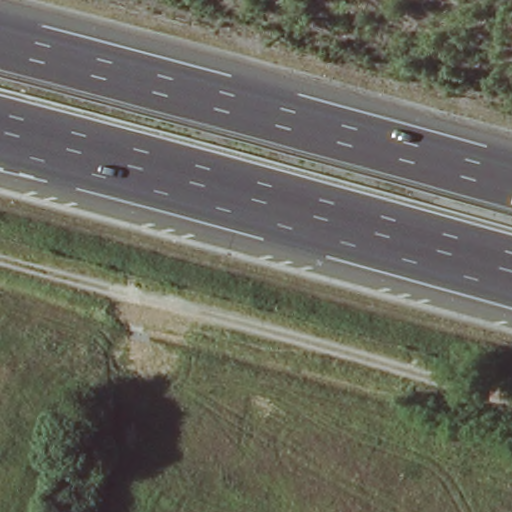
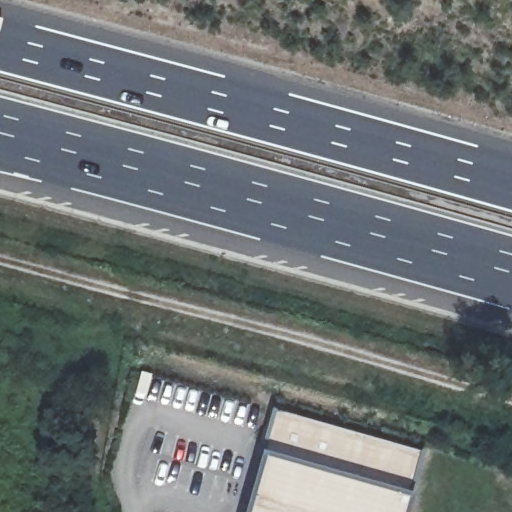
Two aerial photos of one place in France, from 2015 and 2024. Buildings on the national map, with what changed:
new [(422,451),(405,489),(412,491),(406,512),(241,512),(260,447),(257,444),(273,409),(422,451)]

